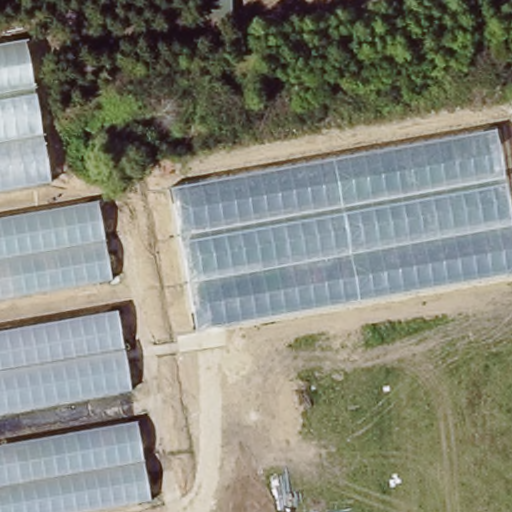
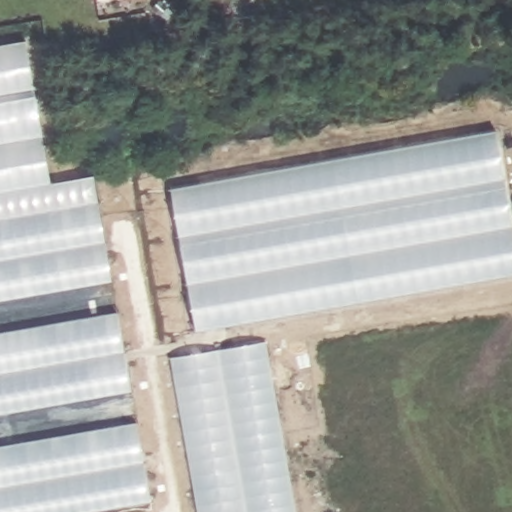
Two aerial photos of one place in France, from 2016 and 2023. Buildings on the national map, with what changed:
unchanged [(23,40),(50,183),(0,192),(0,44),(23,40)]
unchanged [(512,275),(197,331),(170,188),(494,131),(512,230),(512,275)]
unchanged [(106,203),(116,279),(0,295),(0,221),(106,203)]
unchanged [(120,312),(132,382),(0,409),(0,333),(120,312)]
new [(170,358),(265,341),(296,512),(198,512),(170,358)]
unchanged [(150,422),(158,505),(114,512),(0,512),(0,450),(150,422)]

